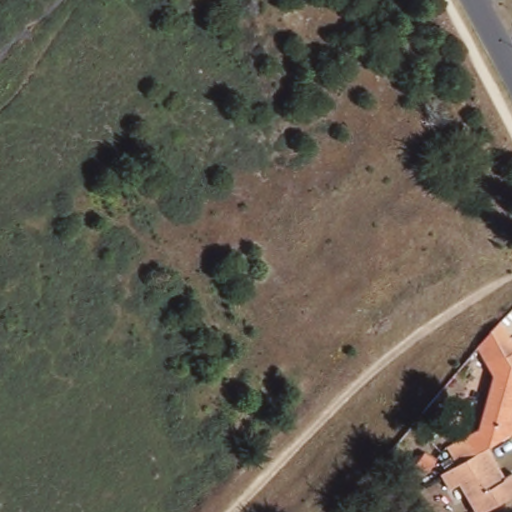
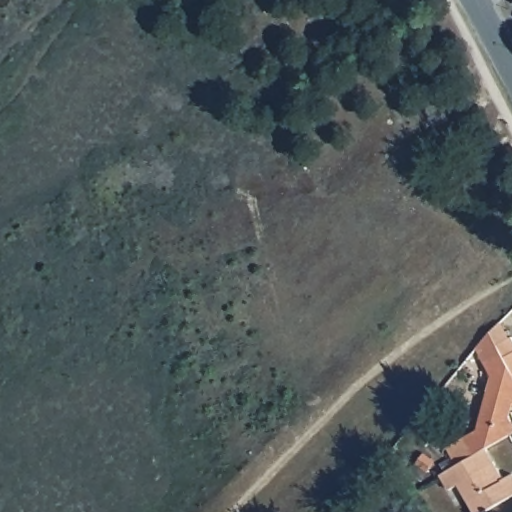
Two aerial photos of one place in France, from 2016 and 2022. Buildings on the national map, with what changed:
unchanged [(512,425),(512,434),(507,436),(485,450),(480,451),(470,458),(454,467),(444,450),(460,440),(475,431),(490,377),(483,364),(475,348),(476,346),(480,342),(488,331),(495,345),(510,336),(512,341),(512,404),(507,417),(512,425)]
unchanged [(512,475),(512,497),(485,512),(474,512),(459,485),(448,491),(439,476),(454,467),(470,458),(480,451),(485,450),(502,480),(512,475)]

